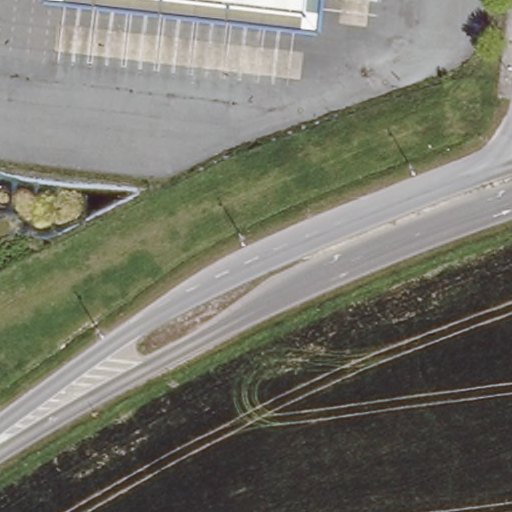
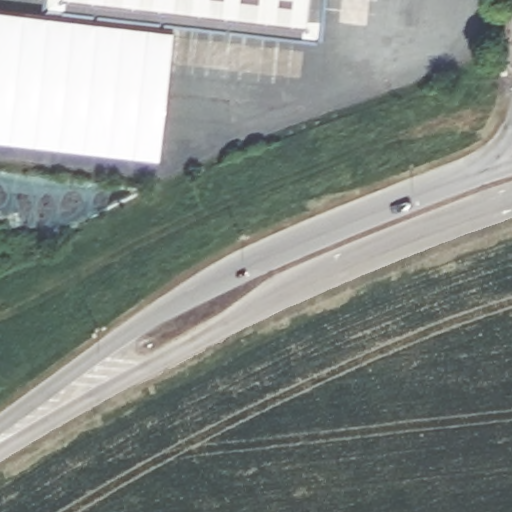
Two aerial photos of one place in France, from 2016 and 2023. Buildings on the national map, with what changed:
unchanged [(305,16),(162,0),(306,0),(305,16)]
new [(0,138),(0,8),(172,28),(159,156),(0,138)]

